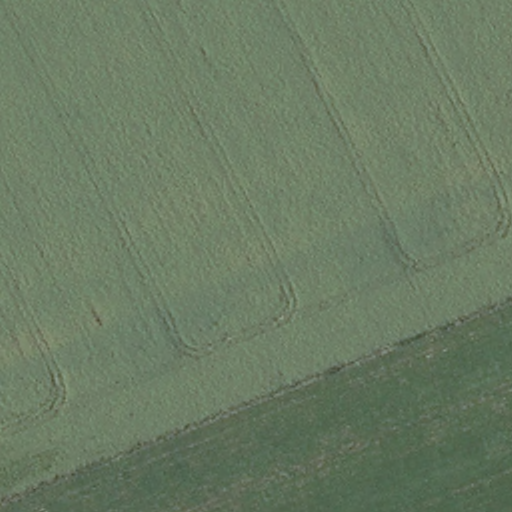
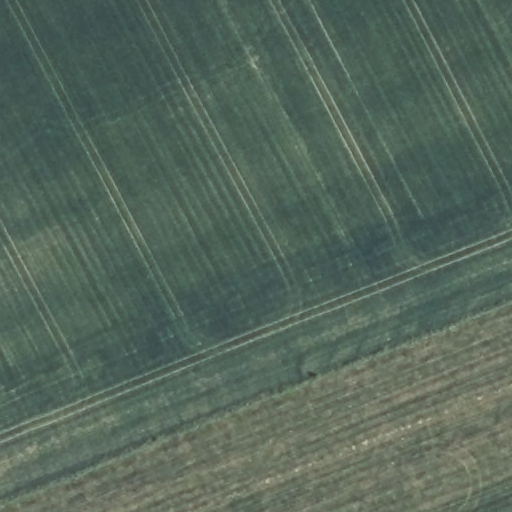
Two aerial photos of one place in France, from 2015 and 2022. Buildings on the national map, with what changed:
[]

